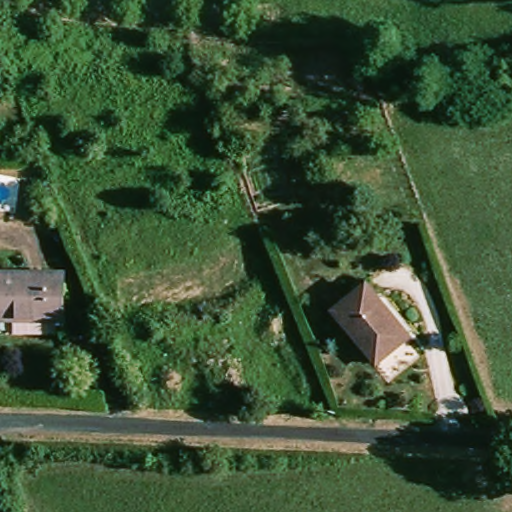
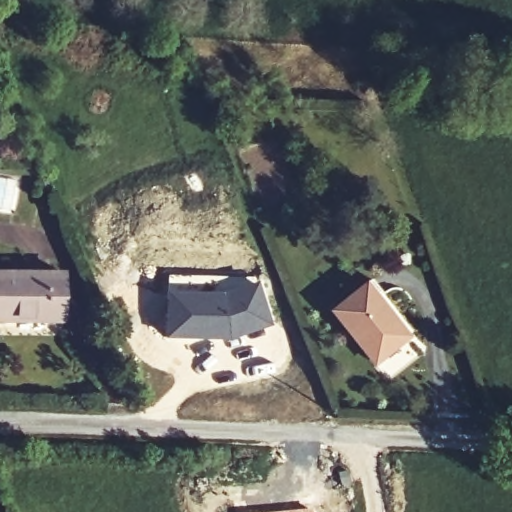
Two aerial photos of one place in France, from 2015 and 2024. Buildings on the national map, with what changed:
unchanged [(0,320),(0,278),(49,277),(51,318),(0,320)]
new [(166,289),(217,289),(219,279),(254,278),(258,278),(274,326),(225,341),(224,338),(164,338),(166,289)]
unchanged [(399,343),(368,364),(331,307),(364,284),(385,315),(383,321),(399,343)]
new [(314,512),(281,512),(314,508),(314,512)]

